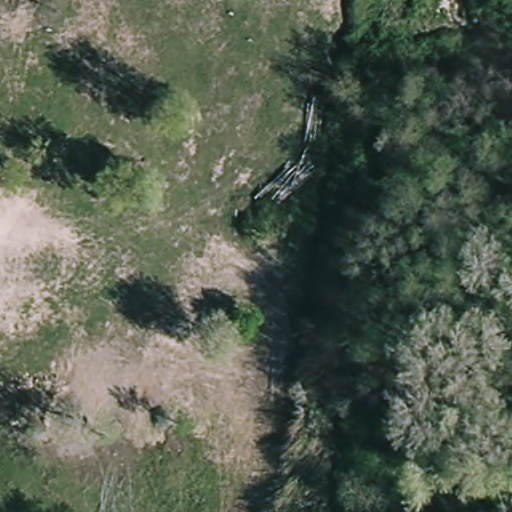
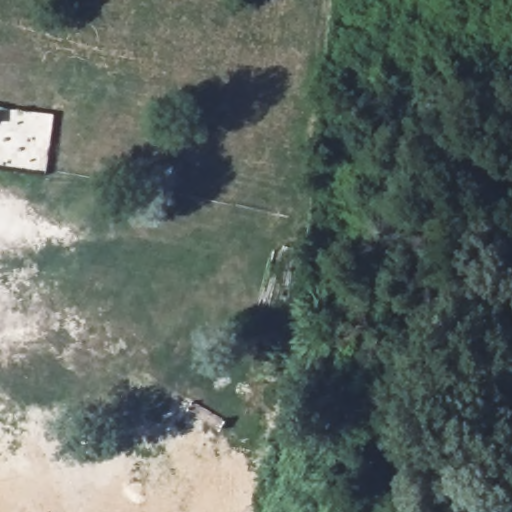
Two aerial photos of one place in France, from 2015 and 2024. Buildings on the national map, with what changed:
new [(53,113),(46,172),(0,165),(0,105),(53,113)]

